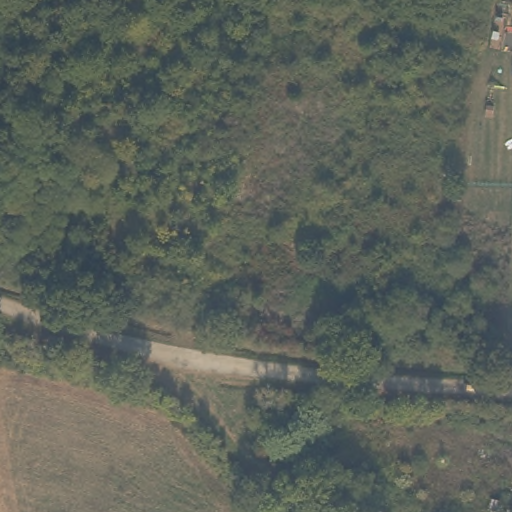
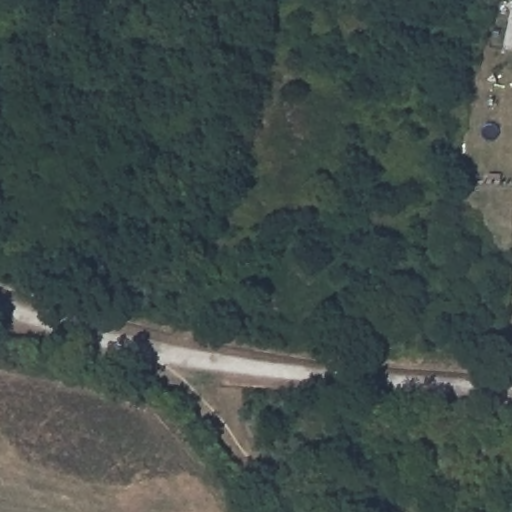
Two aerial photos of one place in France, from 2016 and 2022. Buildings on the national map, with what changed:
[]

